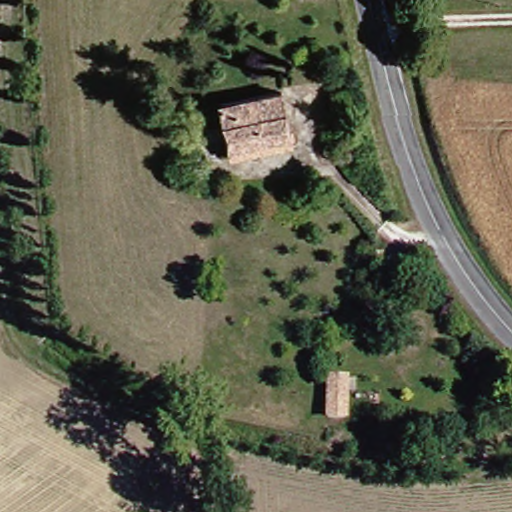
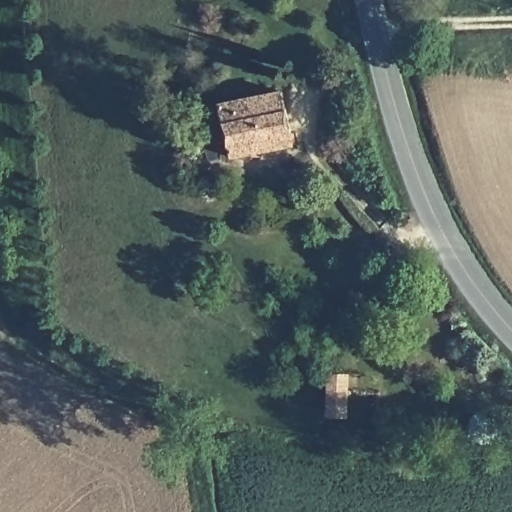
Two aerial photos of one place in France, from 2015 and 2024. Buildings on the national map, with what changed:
unchanged [(280,134),(219,143),(211,106),(274,95),(280,134)]
unchanged [(219,143),(280,134),(284,150),(222,162),(221,155),(219,143)]
unchanged [(332,367),(352,367),(351,410),(330,407),(332,367)]

